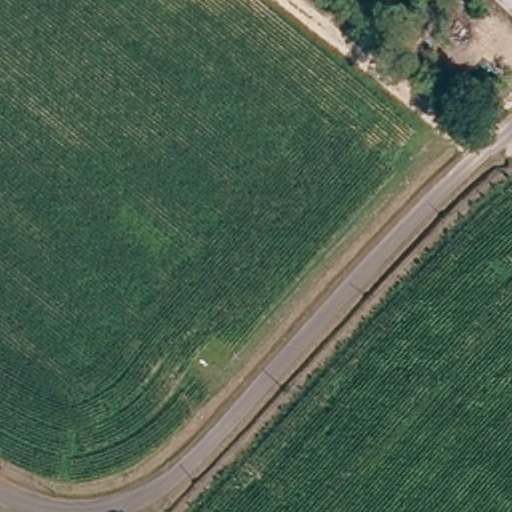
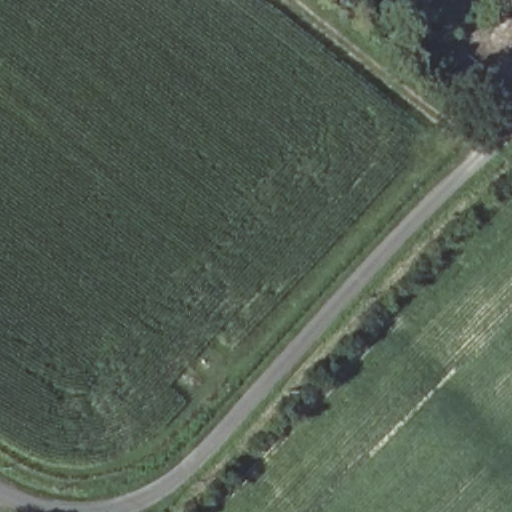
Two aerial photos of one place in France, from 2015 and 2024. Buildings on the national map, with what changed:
unchanged [(512,18),(491,0),(512,0),(512,18)]

